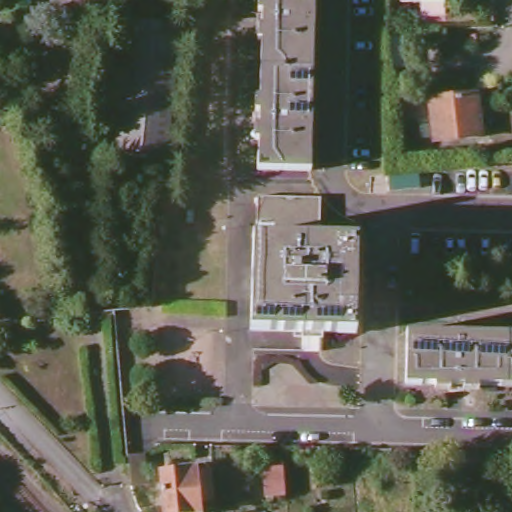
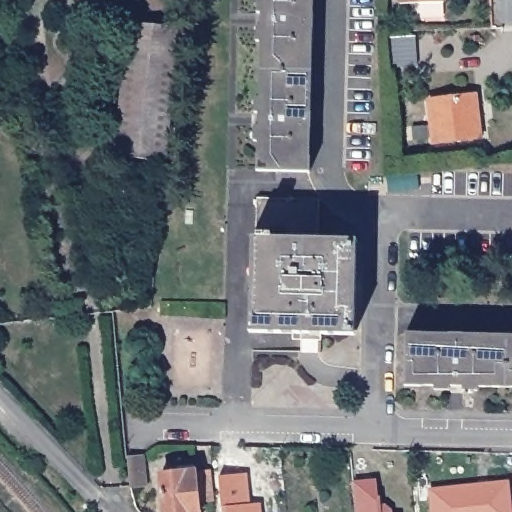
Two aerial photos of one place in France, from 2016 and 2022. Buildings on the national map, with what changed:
unchanged [(310,174),(259,172),(263,0),(314,0),(310,174)]
unchanged [(444,2),(402,4),(401,0),(444,0),(444,2)]
unchanged [(177,44),(167,143),(117,137),(126,40),(177,44)]
unchanged [(480,136),(431,138),(430,94),(479,92),(480,136)]
unchanged [(417,174),(419,190),(389,193),(387,177),(417,174)]
unchanged [(319,201),(319,240),(258,239),(259,199),(319,201)]
unchanged [(319,240),(354,241),(352,335),(256,333),(258,239),(319,240)]
unchanged [(512,389),(407,387),(407,335),(512,337),(512,389)]
unchanged [(146,486),(130,487),(127,458),(144,456),(146,486)]
unchanged [(210,479),(212,508),(200,509),(200,512),(164,512),(162,480),(171,479),(170,475),(197,472),(198,479),(210,479)]
unchanged [(285,500),(267,502),(267,491),(265,474),(283,472),(285,500)]
new [(377,497),(380,497),(382,512),(355,512),(353,481),(376,479),(377,497)]
new [(512,512),(429,512),(426,489),(509,480),(512,509),(512,512)]

